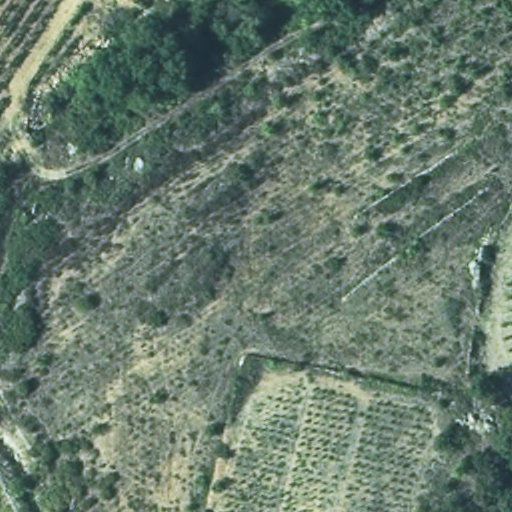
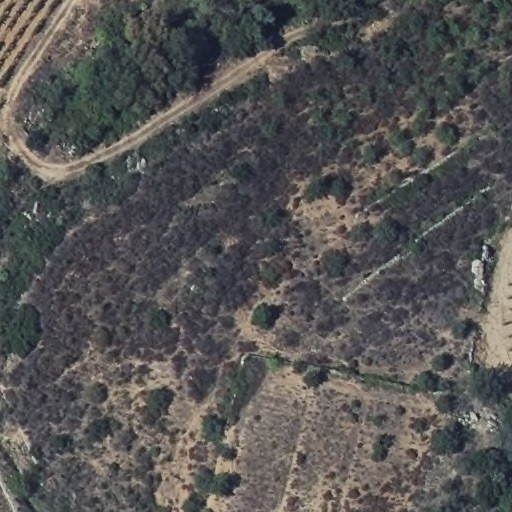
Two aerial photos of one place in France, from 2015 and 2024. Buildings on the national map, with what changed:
unchanged [(301,42),(321,41),(321,53),(303,59),(301,42)]

